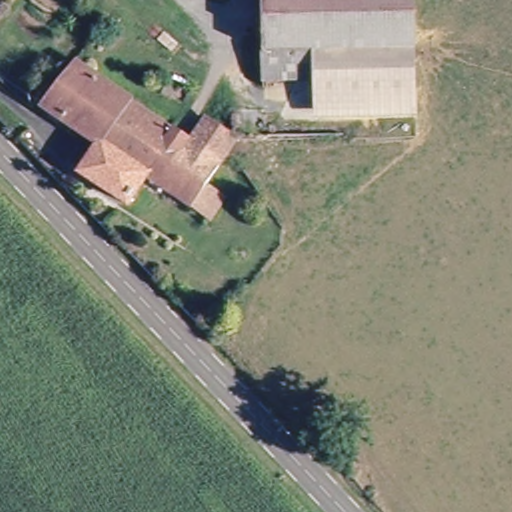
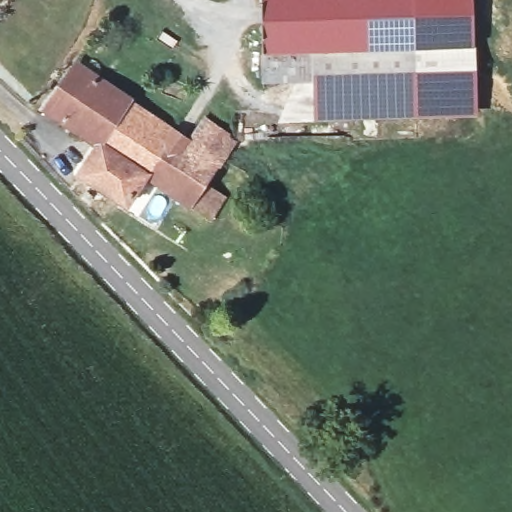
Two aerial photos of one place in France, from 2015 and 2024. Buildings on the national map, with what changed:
unchanged [(415,0),(416,105),(316,107),(316,83),(315,50),(287,51),(265,51),(265,0),(415,0)]
new [(415,0),(473,0),(478,115),(416,115),(416,105),(415,0)]
unchanged [(265,51),(287,51),(315,50),(316,83),(292,84),(266,84),(265,51)]
unchanged [(140,166),(117,196),(110,191),(70,162),(96,128),(82,118),(69,135),(33,109),(66,59),(192,146),(202,133),(212,119),(237,135),(226,150),(217,162),(205,180),(220,192),(204,212),(189,201),(140,166)]
unchanged [(316,107),(416,105),(416,121),(316,123),(316,107)]

